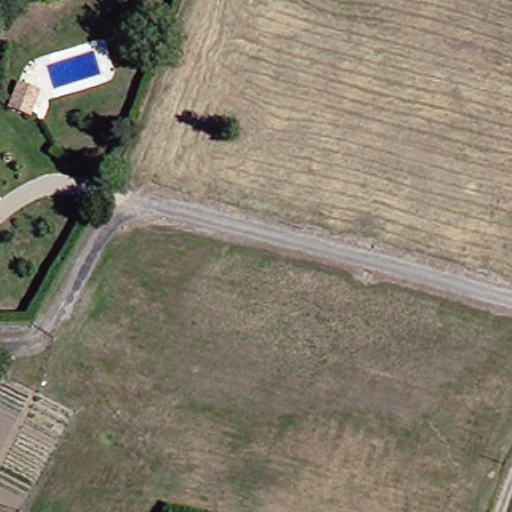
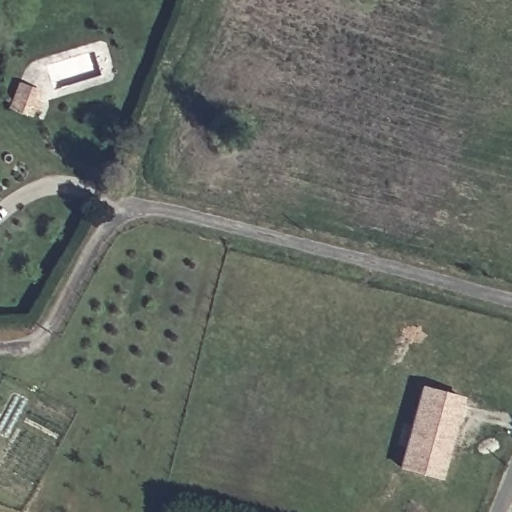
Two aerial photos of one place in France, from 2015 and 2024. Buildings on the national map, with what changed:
new [(38,84),(32,113),(14,109),(20,81),(38,84)]
demolished [(33,126),(4,121),(6,103),(35,107),(33,126)]
new [(463,395),(443,479),(402,468),(424,385),(463,395)]

